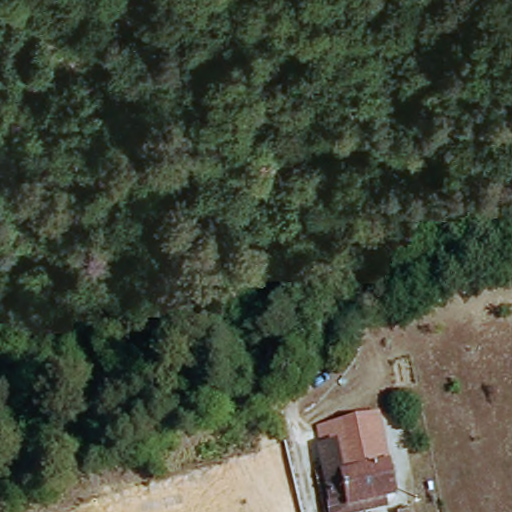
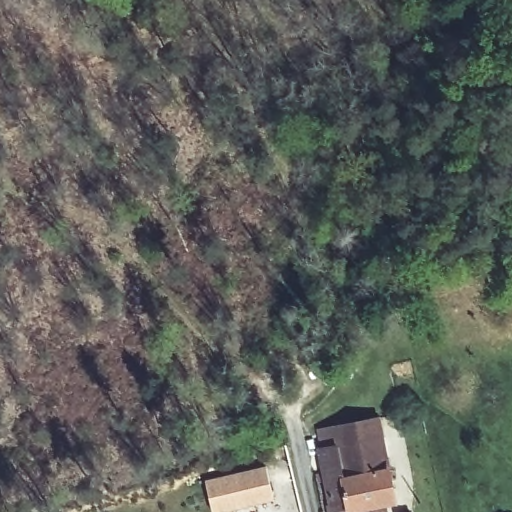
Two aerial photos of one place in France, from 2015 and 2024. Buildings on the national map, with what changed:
unchanged [(373,420),(388,503),(347,512),(345,512),(343,503),(327,506),(321,482),(311,484),(309,475),(319,473),(311,434),(373,420)]
new [(264,467),(271,498),(217,512),(211,512),(203,483),(264,467)]
demolished [(391,507),(406,504),(407,512),(392,512),(391,507)]

